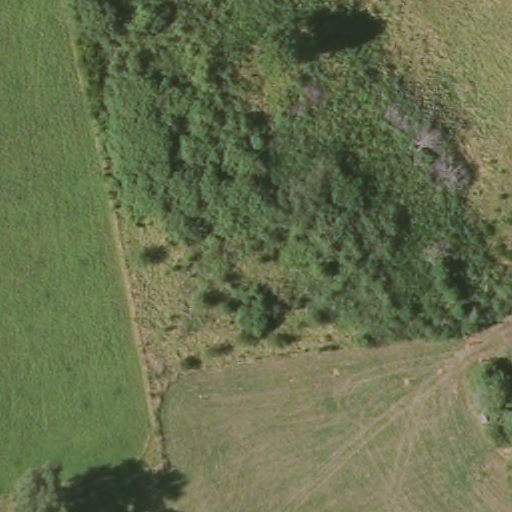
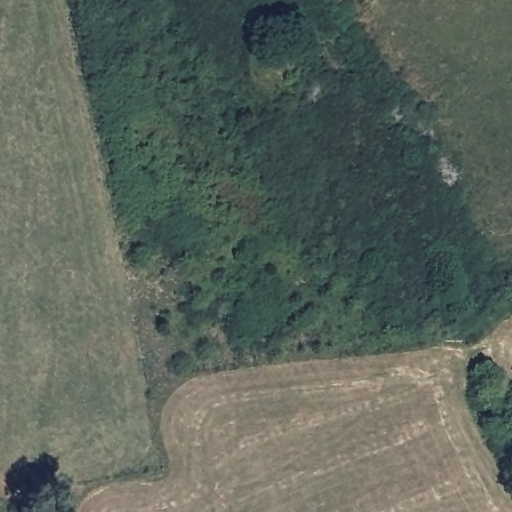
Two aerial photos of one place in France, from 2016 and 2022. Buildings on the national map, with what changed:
unchanged [(351,24),(335,1),(337,0),(357,0),(366,12),(351,24)]

